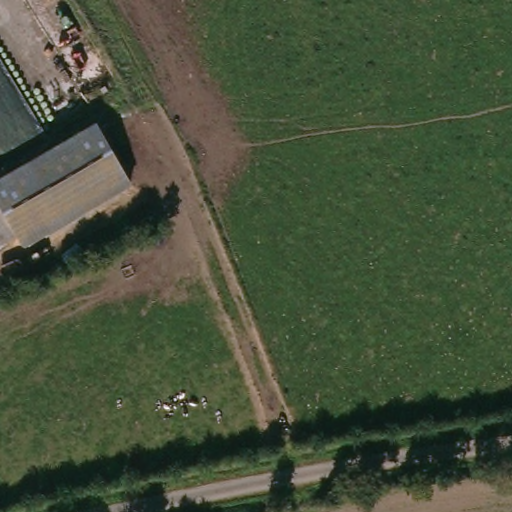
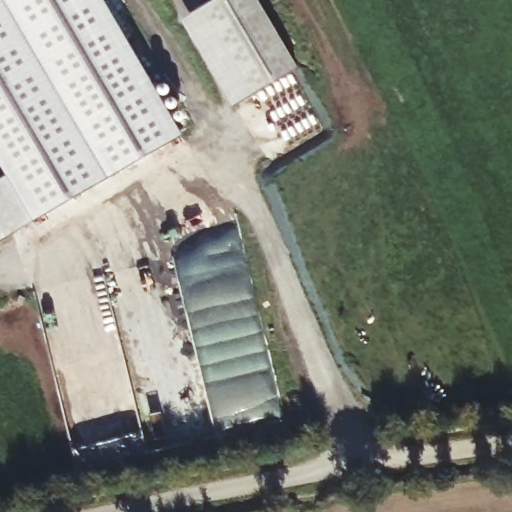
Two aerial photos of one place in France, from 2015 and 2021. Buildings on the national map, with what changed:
new [(34,220),(0,241),(0,180),(8,176),(0,162),(0,0),(104,0),(183,136),(34,220)]
new [(257,0),(298,67),(233,106),(183,20),(217,0),(257,0)]
demolished [(128,190),(111,200),(108,195),(19,247),(16,241),(0,213),(0,182),(93,128),(128,190)]
demolished [(16,241),(0,248),(0,213),(16,241)]

